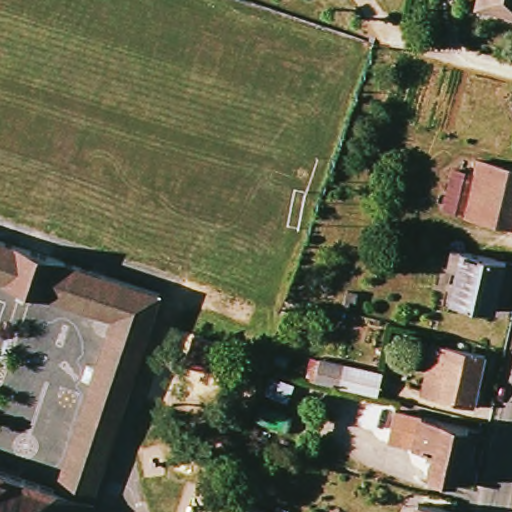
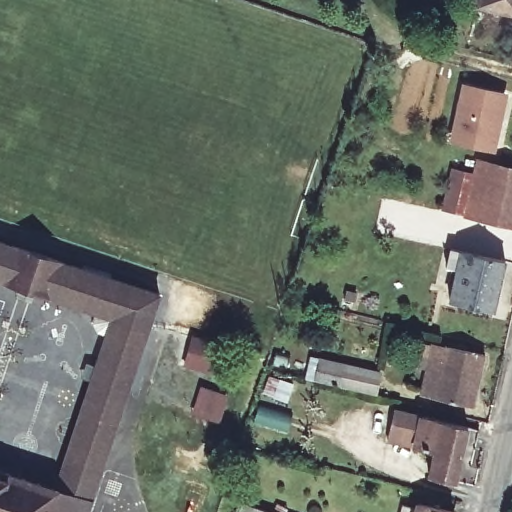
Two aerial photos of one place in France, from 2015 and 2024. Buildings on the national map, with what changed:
unchanged [(482,6),(484,0),(512,0),(512,13),(482,6)]
new [(468,83),(507,91),(495,148),(455,139),(468,83)]
unchanged [(512,166),(512,222),(470,213),(446,208),(455,169),(478,174),(481,159),(512,166)]
unchanged [(0,470),(60,491),(115,320),(0,281),(0,240),(162,295),(92,512),(0,512),(0,470)]
unchanged [(446,269),(450,250),(506,263),(495,314),(451,304),(455,289),(447,288),(450,269),(446,269)]
unchanged [(346,304),(348,299),(356,300),(355,307),(346,304)]
unchanged [(432,343),(442,346),(445,344),(485,353),(473,404),(435,395),(434,393),(423,389),(432,343)]
unchanged [(409,362),(413,344),(425,347),(421,364),(409,362)]
unchanged [(322,362),(330,364),(378,376),(373,394),(317,381),(322,362)]
unchanged [(393,408),(420,415),(471,427),(459,484),(424,476),(430,451),(413,446),(415,437),(388,428),(393,408)]
unchanged [(422,501),(459,510),(458,512),(420,512),(422,501)]
unchanged [(240,506),(258,512),(238,512),(240,506)]

